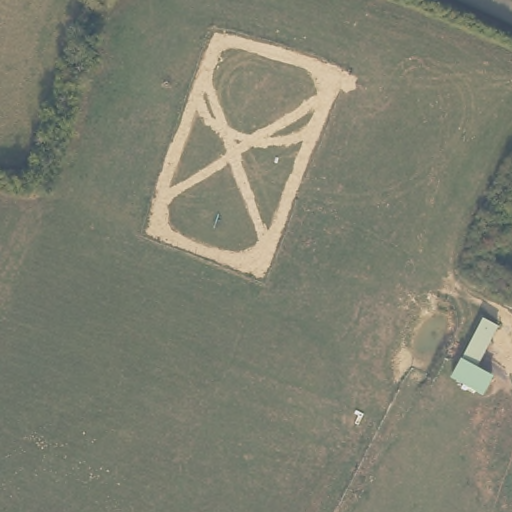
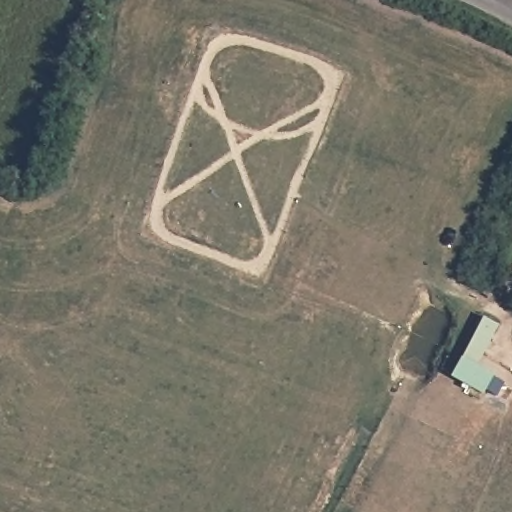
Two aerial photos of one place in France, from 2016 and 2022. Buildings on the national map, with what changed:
unchanged [(495,374),(485,394),(451,376),(484,316),(500,324),(478,365),(495,374)]

